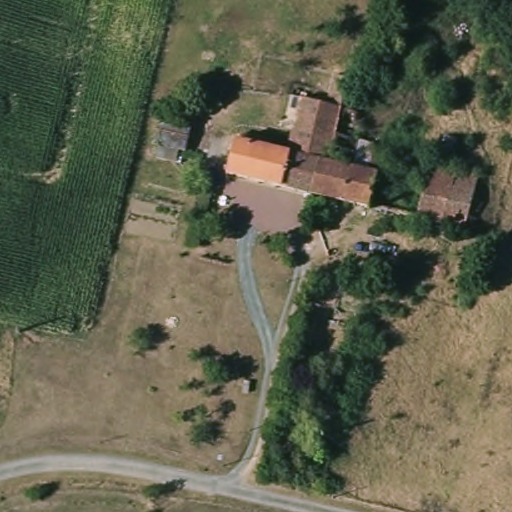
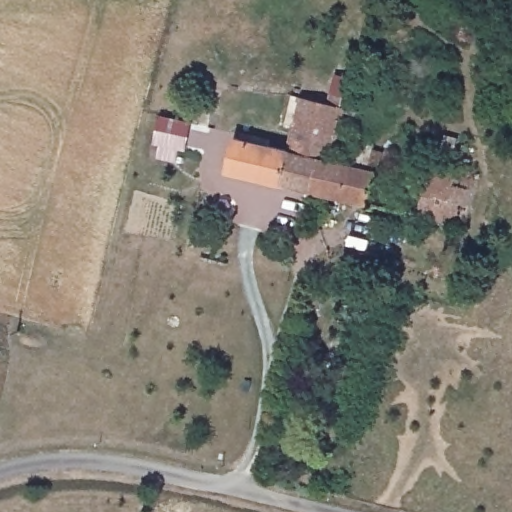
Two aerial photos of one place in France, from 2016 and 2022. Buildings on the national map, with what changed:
unchanged [(144,155),(155,107),(179,115),(182,101),(211,114),(204,141),(185,140),(176,166),(144,155)]
unchanged [(322,111),(312,151),(294,146),(296,136),(282,132),(288,104),(322,111)]
unchanged [(237,179),(246,146),(291,157),(294,146),(312,151),(322,111),(344,116),(333,155),(329,157),(319,198),(313,197),(237,179)]
unchanged [(329,157),(333,155),(344,116),(358,119),(352,142),(360,145),(354,172),(366,175),(373,154),(478,179),(463,232),(326,200),(319,198),(329,157)]

